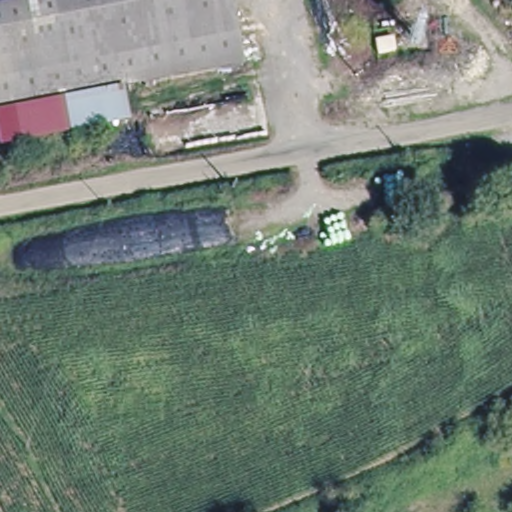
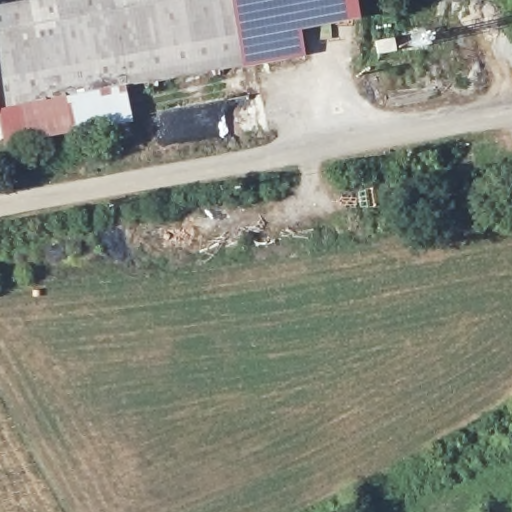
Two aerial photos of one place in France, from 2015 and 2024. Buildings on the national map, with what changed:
unchanged [(0,7),(38,0),(223,0),(235,65),(137,84),(125,87),(61,101),(0,112),(0,7)]
new [(300,29),(304,56),(236,69),(235,65),(223,0),(356,0),(359,19),(300,29)]
unchanged [(396,54),(380,57),(377,44),(392,43),(396,54)]
unchanged [(125,87),(132,122),(2,146),(0,133),(0,112),(61,101),(125,87)]

